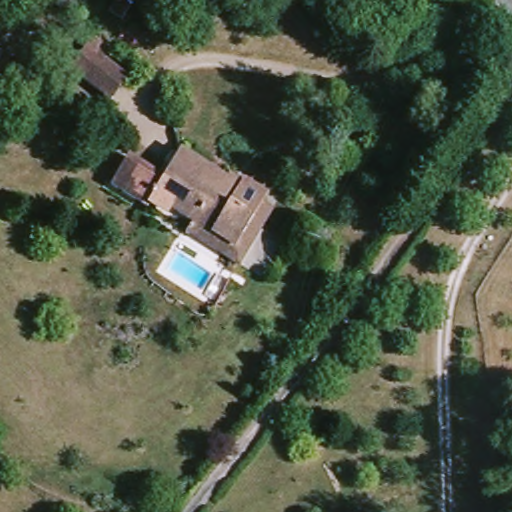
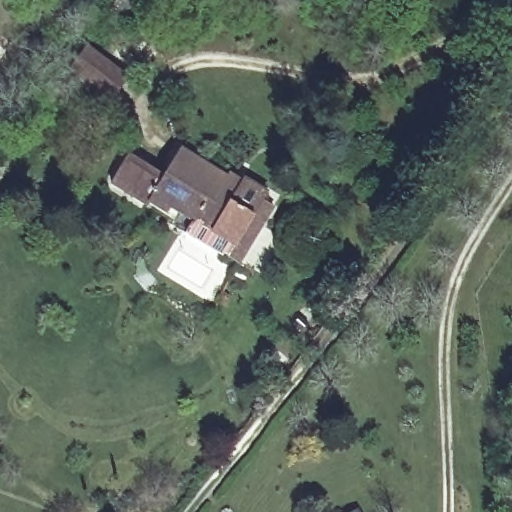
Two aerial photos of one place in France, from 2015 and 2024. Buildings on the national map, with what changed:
unchanged [(126,85),(105,107),(72,76),(92,53),(126,85)]
unchanged [(147,202),(140,212),(105,189),(124,160),(159,181),(175,155),(234,192),(239,185),(261,198),(257,205),(229,252),(189,227),(147,202)]
unchanged [(271,212),(235,270),(182,237),(189,227),(229,252),(257,205),(271,212)]

